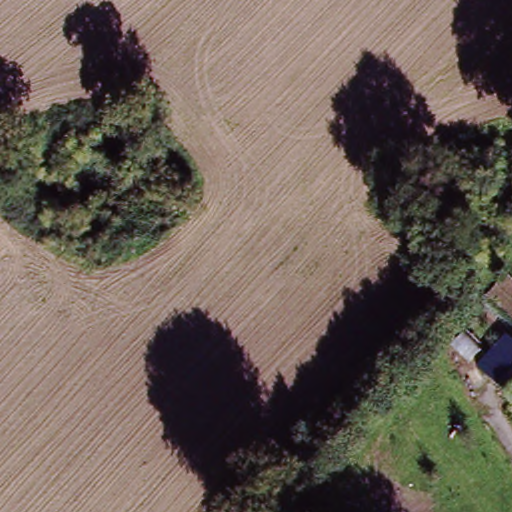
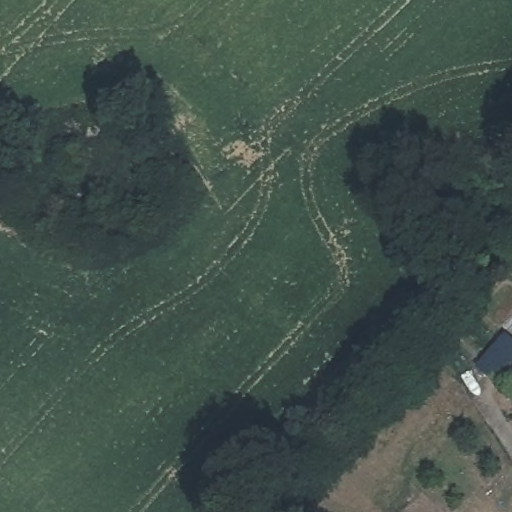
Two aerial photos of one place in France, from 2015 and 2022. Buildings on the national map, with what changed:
unchanged [(478,368),(509,337),(512,340),(512,401),(498,388),(478,368)]

